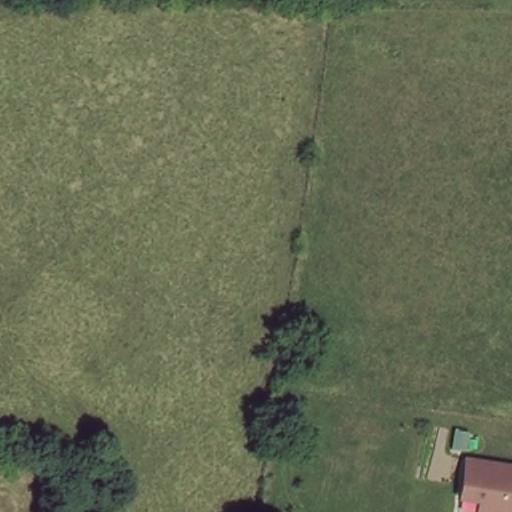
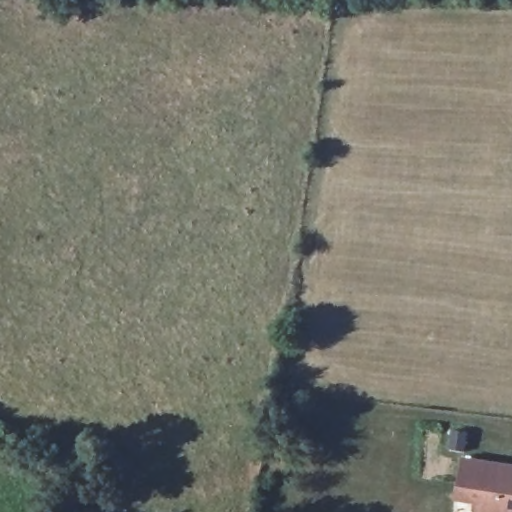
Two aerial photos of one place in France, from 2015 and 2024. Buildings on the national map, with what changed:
unchanged [(473,512),(473,503),(457,501),(464,460),(512,466),(512,512),(473,512)]

